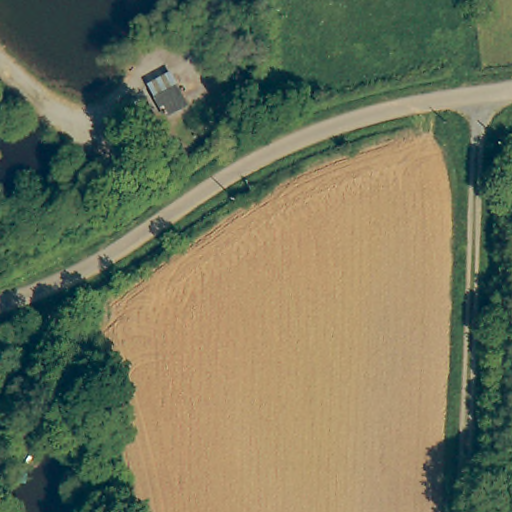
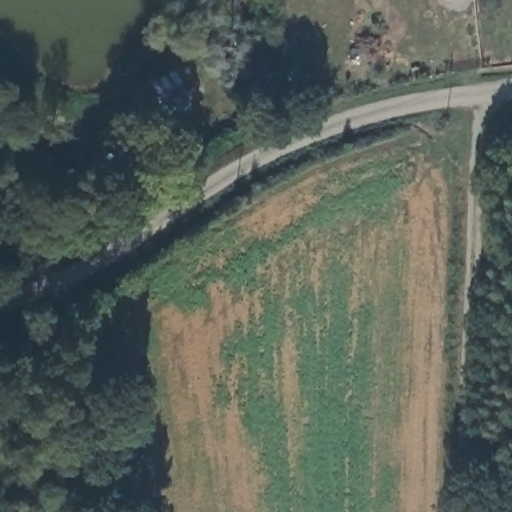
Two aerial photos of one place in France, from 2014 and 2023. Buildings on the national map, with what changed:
unchanged [(173,86),(183,103),(161,116),(151,99),(173,86)]

